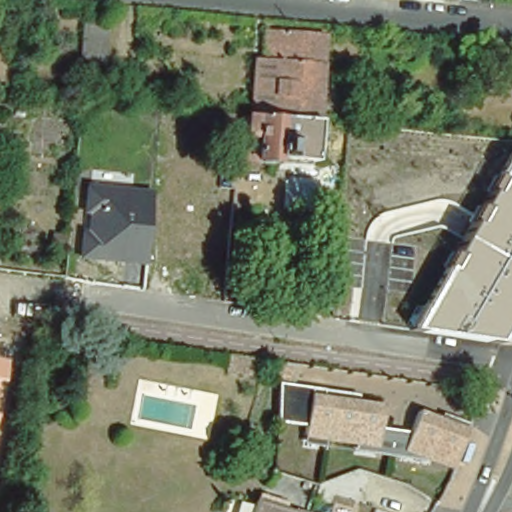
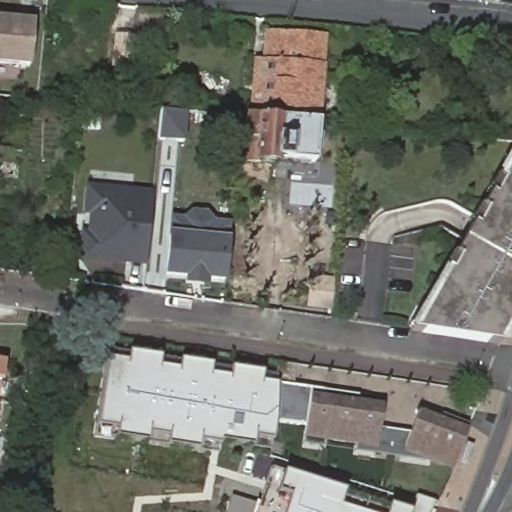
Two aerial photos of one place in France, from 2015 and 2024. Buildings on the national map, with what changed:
unchanged [(80,4),(108,7),(101,69),(74,66),(80,4)]
new [(0,16),(34,19),(30,65),(0,63),(0,16)]
unchanged [(276,64),(263,63),(266,31),(324,36),(315,124),(271,120),(276,64)]
unchanged [(255,62),(263,63),(276,64),(271,120),(250,118),(255,62)]
unchanged [(250,118),(271,120),(315,124),(312,163),(274,160),(274,164),(241,161),(244,117),(250,118)]
unchanged [(503,346),(407,332),(508,149),(512,150),(512,329),(503,346)]
unchanged [(146,265),(80,259),(82,232),(86,232),(88,214),(82,212),(86,181),(154,188),(146,265)]
new [(205,280),(204,287),(183,284),(183,278),(161,276),(167,233),(168,216),(182,217),(190,212),(207,213),(213,220),(230,222),(230,239),(225,282),(205,280)]
new [(310,280),(331,283),(328,309),(308,307),(310,280)]
demolished [(228,352),(256,356),(252,379),(224,375),(228,352)]
new [(105,359),(126,362),(126,353),(261,372),(278,375),(277,382),(277,421),(270,440),(269,451),(217,444),(216,453),(195,450),(114,437),(116,428),(94,425),(105,359)]
unchanged [(0,359),(5,360),(0,384),(0,359)]
unchanged [(279,362),(299,365),(297,385),(360,393),(359,401),(386,404),(381,429),(413,432),(420,412),(471,430),(452,466),(358,454),(358,446),(303,440),(306,425),(277,421),(277,382),(279,362)]
new [(254,505),(267,469),(281,472),(287,474),(389,505),(410,512),(225,512),(229,496),(254,505)]
demolished [(280,497),(278,506),(298,512),(247,512),(255,489),(280,497)]
new [(438,503),(432,512),(412,512),(417,496),(438,503)]

